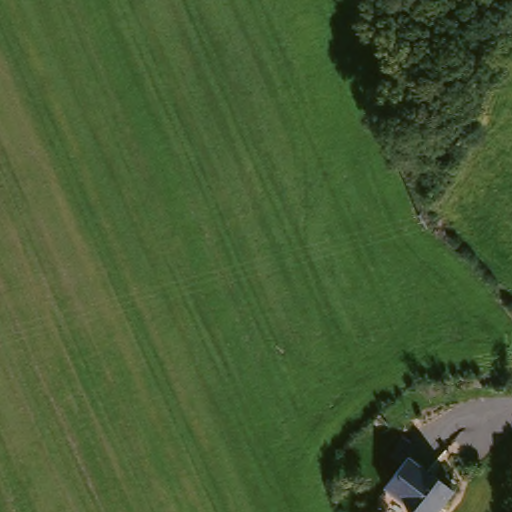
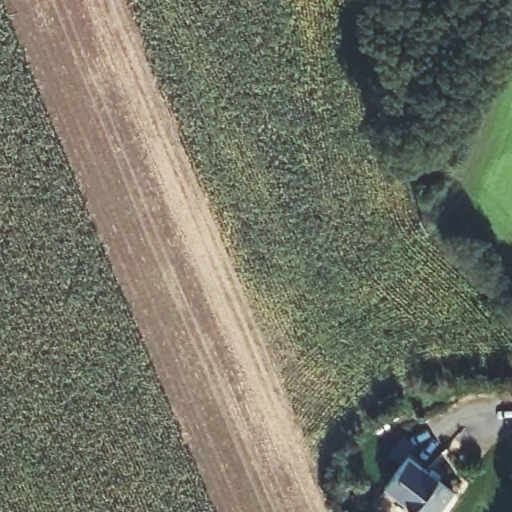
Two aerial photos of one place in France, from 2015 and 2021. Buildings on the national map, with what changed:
unchanged [(438,512),(416,512),(414,510),(418,504),(389,483),(413,452),(457,487),(438,512)]

